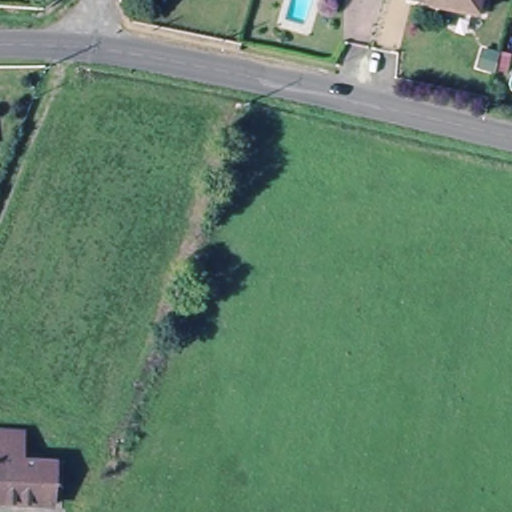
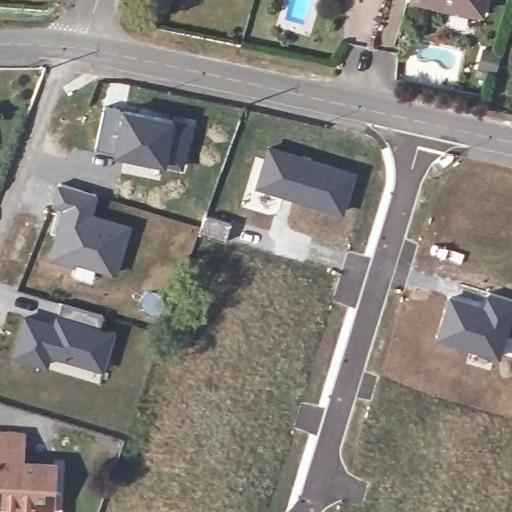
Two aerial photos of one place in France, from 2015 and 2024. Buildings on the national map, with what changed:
unchanged [(428,0),(485,0),(482,12),(428,0)]
new [(109,82),(130,85),(126,101),(112,100),(111,105),(196,119),(185,167),(94,148),(109,82)]
new [(267,145),(308,156),(358,172),(344,213),(254,186),(267,145)]
new [(59,213),(50,210),(56,181),(99,193),(95,212),(133,224),(117,274),(96,269),(91,284),(71,277),(75,264),(49,257),(59,213)]
new [(449,294),(483,302),(487,291),(512,299),(512,322),(505,344),(512,346),(512,354),(502,351),(498,360),(436,339),(449,294)]
new [(24,313),(53,321),(60,302),(105,314),(101,326),(117,331),(104,371),(53,357),(47,367),(11,355),(24,313)]
unchanged [(24,460),(55,462),(53,503),(0,500),(0,431),(25,432),(24,460)]

